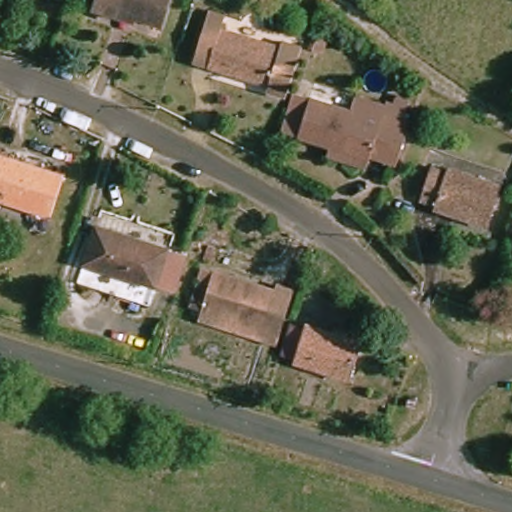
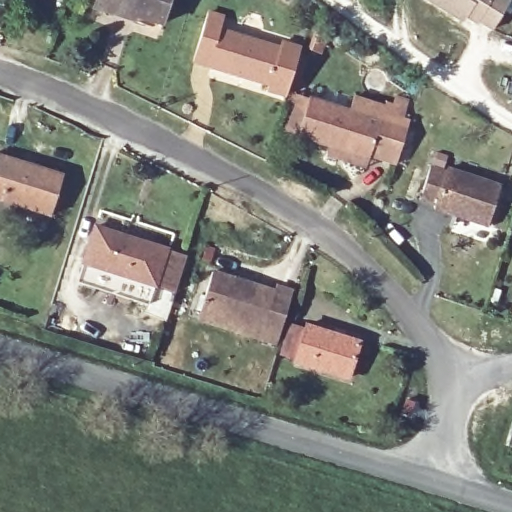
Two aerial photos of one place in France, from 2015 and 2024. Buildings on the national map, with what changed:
unchanged [(98,10),(101,0),(169,0),(159,29),(137,22),(118,16),(98,10)]
new [(512,1),(495,30),(481,20),(480,24),(462,13),(459,19),(428,0),(509,0),(512,1)]
unchanged [(282,44),(302,50),(286,96),(267,91),(269,85),(194,61),(208,17),(223,22),(221,30),(280,49),(282,44)]
unchanged [(329,151),(331,142),(297,131),(310,94),(350,107),(355,90),(388,101),(385,109),(412,116),(400,158),(371,150),(369,155),(366,162),(329,151)]
unchanged [(71,165),(55,221),(0,206),(0,154),(3,144),(71,165)]
unchanged [(439,204),(441,198),(423,190),(434,162),(452,169),(453,164),(505,182),(490,222),(439,204)]
unchanged [(103,214),(176,235),(160,292),(86,271),(103,214)]
unchanged [(204,310),(190,307),(206,265),(279,290),(285,285),(299,292),(282,344),(265,339),(202,319),(204,310)]
unchanged [(347,371),(295,355),(304,323),(356,340),(347,371)]

